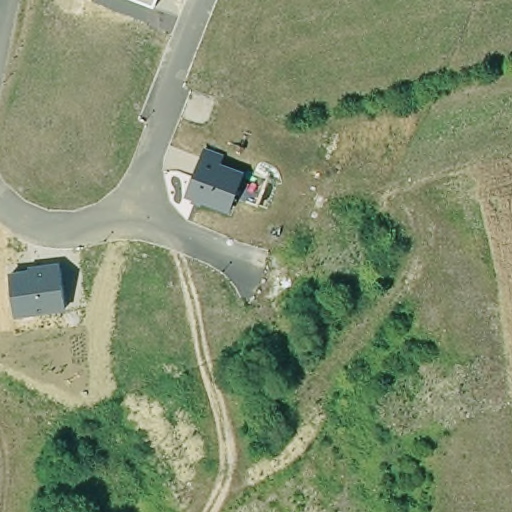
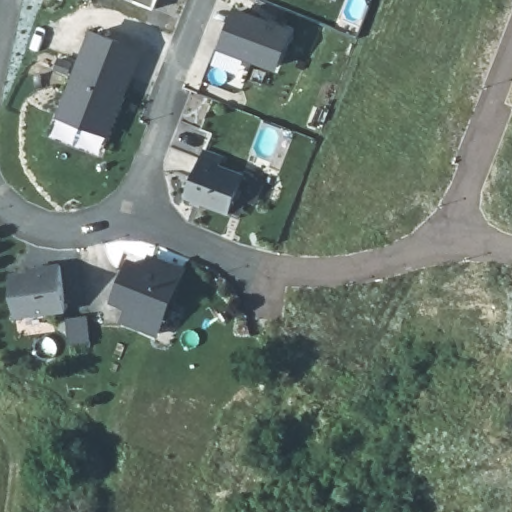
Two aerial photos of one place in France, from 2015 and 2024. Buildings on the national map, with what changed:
unchanged [(133,0),(158,0),(155,9),(133,0)]
new [(288,31),(275,66),(225,47),(239,12),(288,31)]
new [(55,134),(62,115),(95,33),(139,50),(130,75),(124,73),(120,85),(125,88),(107,133),(100,151),(55,134)]
unchanged [(223,158),(220,166),(243,175),(229,213),(187,197),(204,150),(223,158)]
new [(127,320),(133,305),(117,299),(132,262),(145,267),(149,257),(165,263),(182,269),(163,318),(157,332),(127,320)]
unchanged [(44,271),(44,268),(60,265),(66,309),(17,316),(12,274),(44,271)]

